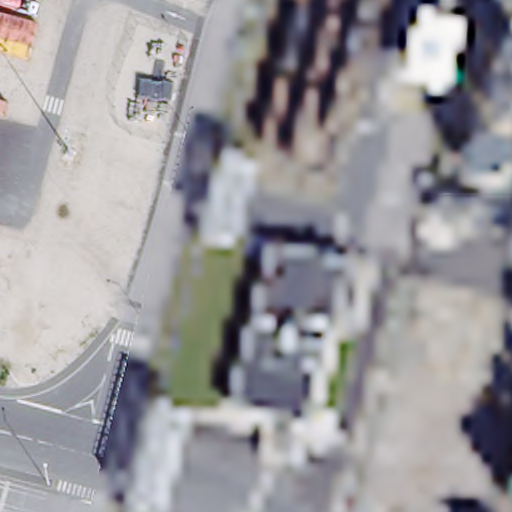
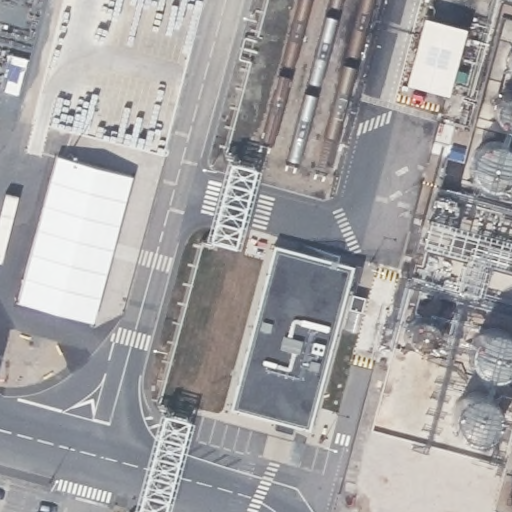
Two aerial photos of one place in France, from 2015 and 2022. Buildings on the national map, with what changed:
unchanged [(464,26),(448,92),(407,82),(424,16),(464,26)]
new [(0,174),(0,128),(10,130),(0,174)]
new [(65,158),(138,178),(97,323),(21,303),(65,158)]
new [(355,266),(309,430),(230,411),(274,246),(355,266)]
demolished [(512,493),(512,492),(512,502),(511,499),(512,493)]

